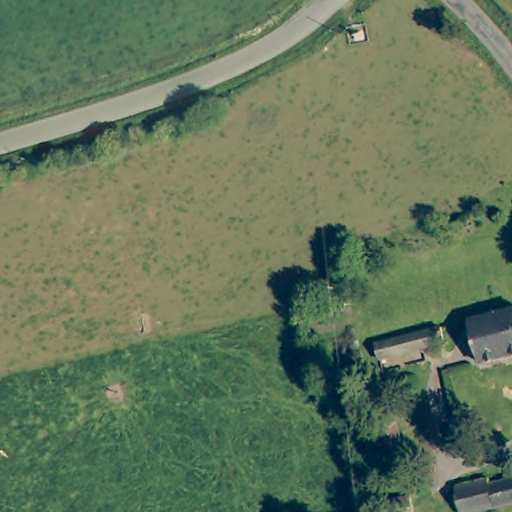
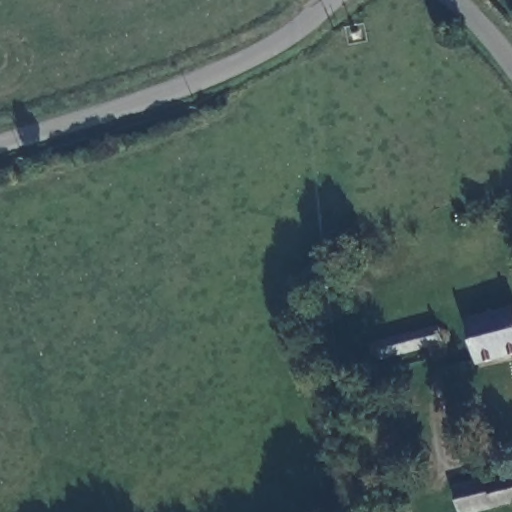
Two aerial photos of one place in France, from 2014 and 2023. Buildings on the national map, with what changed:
unchanged [(512,353),(483,361),(471,317),(512,306),(512,353)]
unchanged [(441,323),(445,340),(381,355),(378,338),(441,323)]
unchanged [(470,478),(501,470),(503,476),(512,474),(512,497),(477,506),(470,478)]
unchanged [(411,512),(391,512),(386,500),(403,495),(411,512)]

